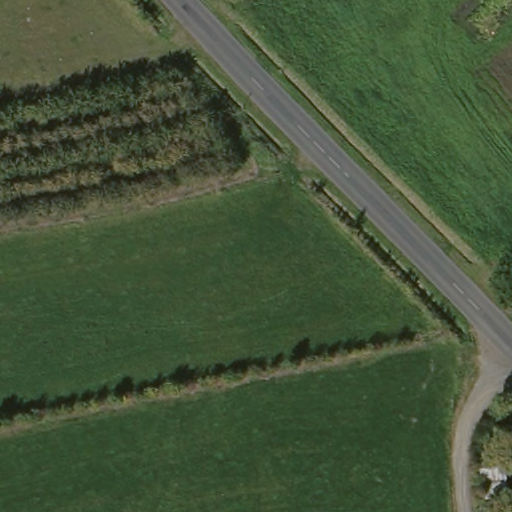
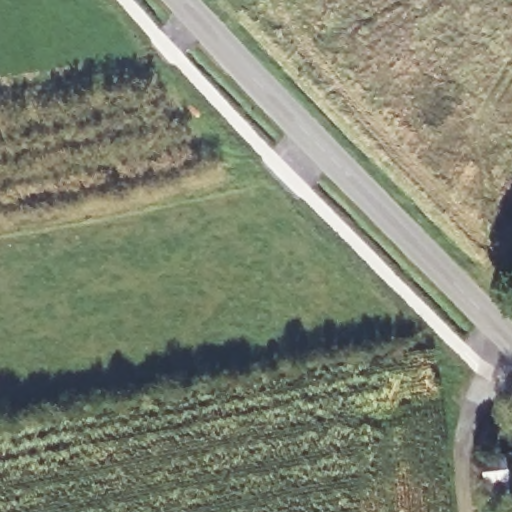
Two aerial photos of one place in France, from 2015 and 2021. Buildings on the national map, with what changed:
unchanged [(494,480),(512,471),(512,511),(506,501),(494,480)]

